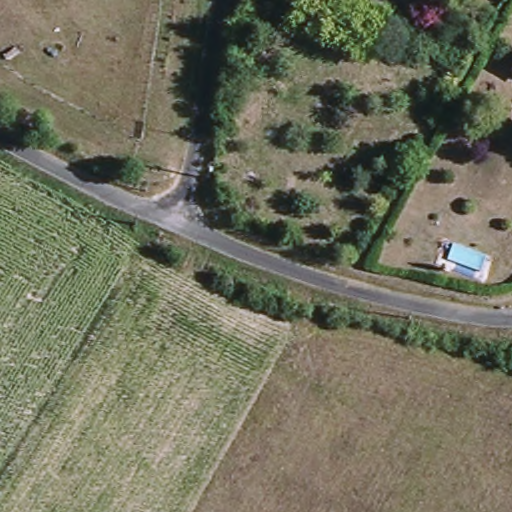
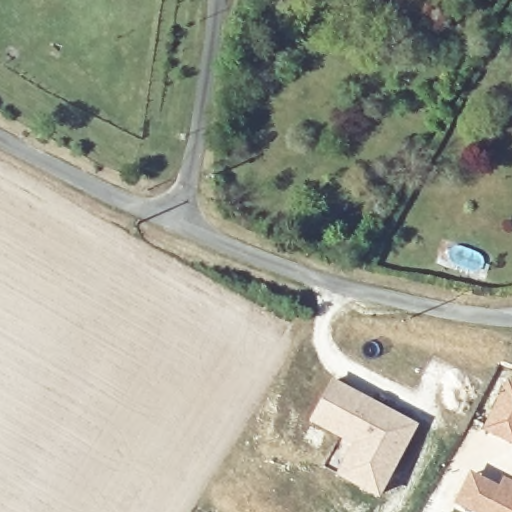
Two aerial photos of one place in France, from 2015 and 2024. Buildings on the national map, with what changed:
new [(375,501),(332,478),(350,446),(306,423),(331,378),(416,425),(375,501)]
new [(512,383),(512,440),(487,427),(509,382),(512,383)]
new [(472,475),(501,490),(505,481),(512,484),(512,512),(476,512),(458,503),(472,475)]

